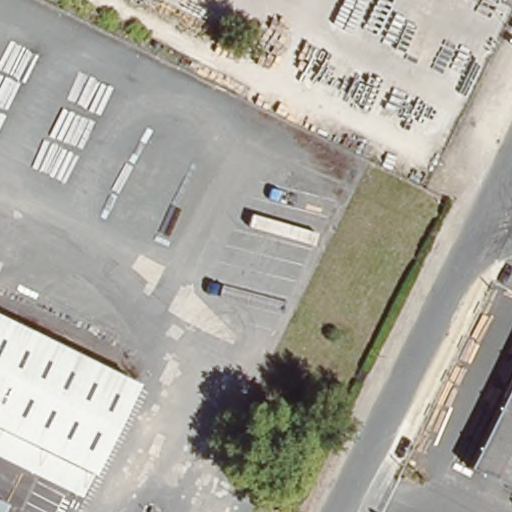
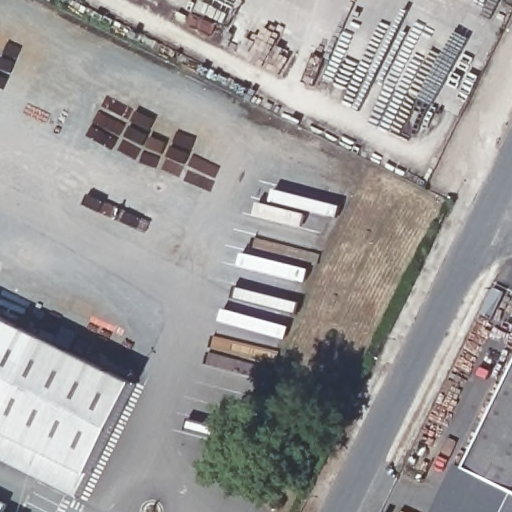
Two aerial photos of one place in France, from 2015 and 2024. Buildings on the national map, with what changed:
unchanged [(44,341),(0,428),(0,320),(44,341)]
unchanged [(44,341),(134,384),(80,496),(0,456),(0,428),(44,341)]
unchanged [(512,375),(512,488),(466,465),(512,375)]
new [(466,465),(512,488),(512,512),(436,512),(459,462),(466,465)]
unchanged [(4,503),(0,512),(0,500),(4,503)]

